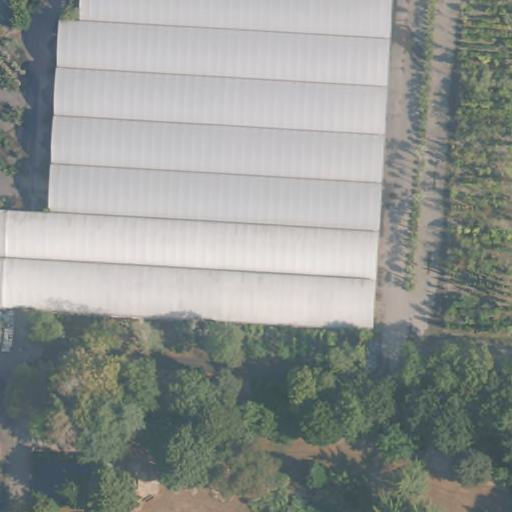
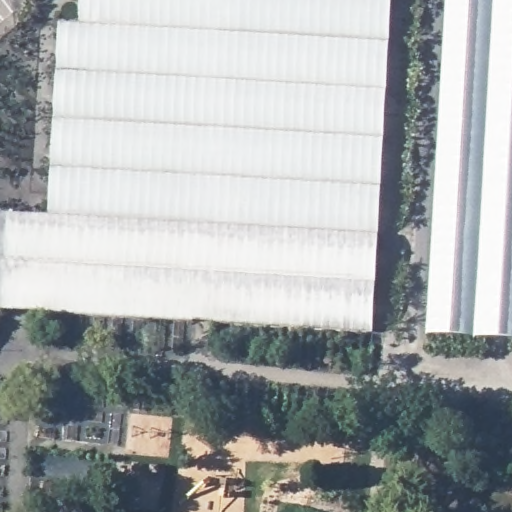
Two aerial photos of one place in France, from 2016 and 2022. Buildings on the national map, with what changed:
unchanged [(11,214),(50,215),(59,25),(80,25),(81,0),(392,0),(373,330),(4,310),(11,214)]
new [(428,337),(446,0),(512,0),(512,342),(428,337)]
unchanged [(10,215),(4,309),(4,310),(0,310),(0,213),(10,214),(10,215)]

